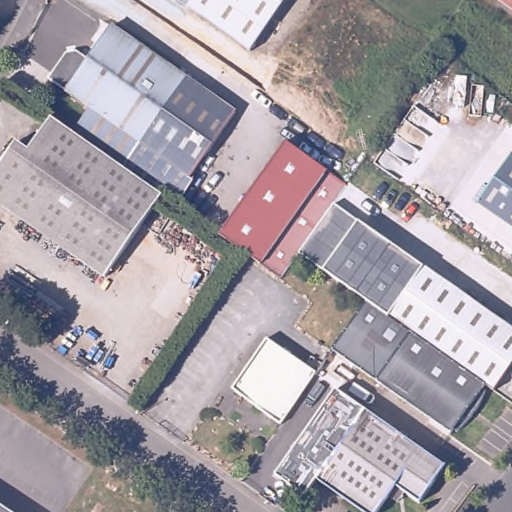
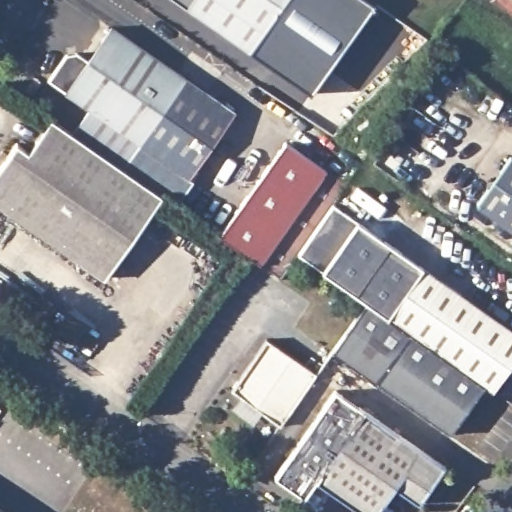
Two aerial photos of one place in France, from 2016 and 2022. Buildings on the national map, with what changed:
unchanged [(177,0),(285,0),(252,49),(177,0)]
new [(369,0),(375,5),(312,92),(252,51),(252,49),(285,0),(369,0)]
unchanged [(77,133),(92,109),(51,80),(68,55),(82,53),(91,61),(115,26),(239,112),(192,178),(143,145),(127,167),(77,133)]
unchanged [(52,116),(77,133),(127,167),(159,190),(102,272),(0,203),(0,168),(19,142),(28,149),(52,116)]
unchanged [(347,189),(281,281),(221,237),(286,144),(347,189)]
unchanged [(512,155),(512,226),(472,197),(506,150),(512,155)]
unchanged [(154,182),(164,169),(192,189),(182,202),(154,182)]
unchanged [(385,312),(370,301),(325,270),(301,254),(336,206),(357,221),(420,262),(385,312)]
unchanged [(385,312),(420,262),(512,327),(512,352),(489,385),(481,379),(467,370),(413,332),(406,327),(385,312)]
unchanged [(370,301),(385,312),(406,327),(371,377),(336,350),(370,301)]
unchanged [(413,332),(467,370),(481,379),(477,383),(481,386),(479,390),(477,396),(475,401),(471,407),(467,412),(462,417),(457,422),(452,427),(448,425),(446,428),(405,400),(371,377),(406,327),(413,332)]
unchanged [(267,340),(318,374),(283,426),(233,392),(267,340)]
unchanged [(369,412),(321,481),(306,502),(272,478),(335,390),(369,412)]
unchanged [(321,481),(369,412),(447,467),(421,502),(402,490),(384,512),(364,512),(321,481)]
unchanged [(4,512),(0,512),(0,509),(4,512)]

